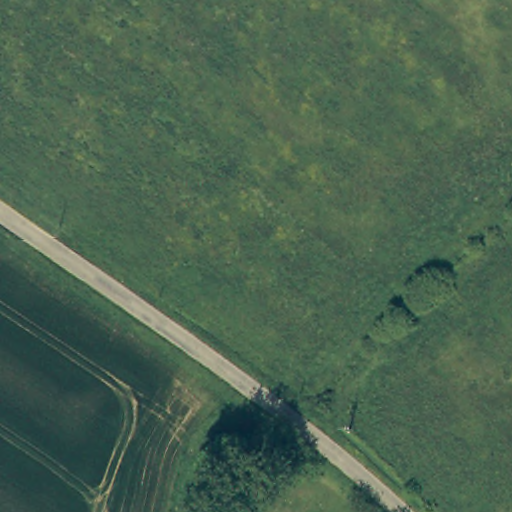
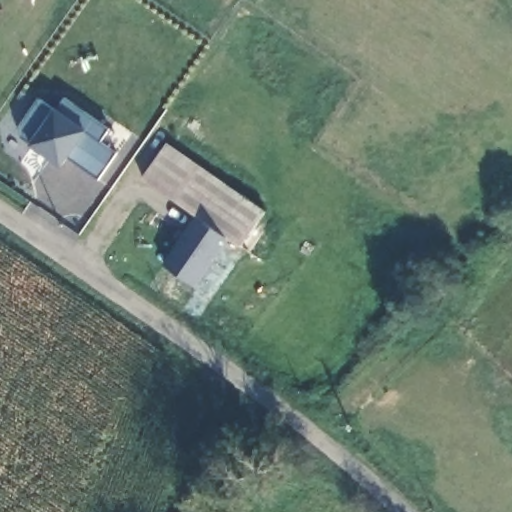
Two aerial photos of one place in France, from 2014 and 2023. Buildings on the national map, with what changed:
new [(70,157),(64,168),(29,146),(20,139),(18,127),(40,99),(55,109),(57,111),(65,100),(110,129),(101,143),(117,153),(99,179),(70,157)]
new [(167,144),(266,213),(242,249),(228,241),(197,288),(164,266),(196,218),(141,179),(167,144)]

